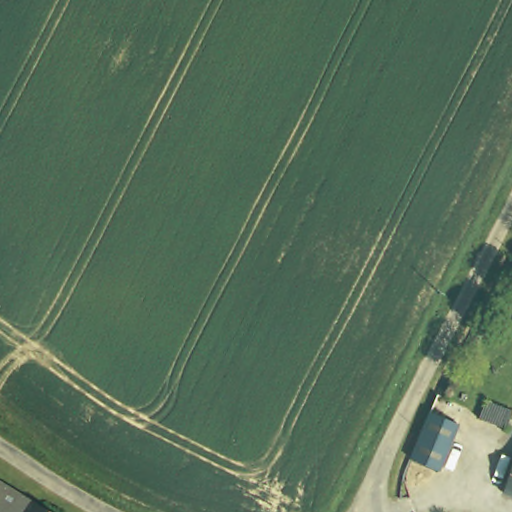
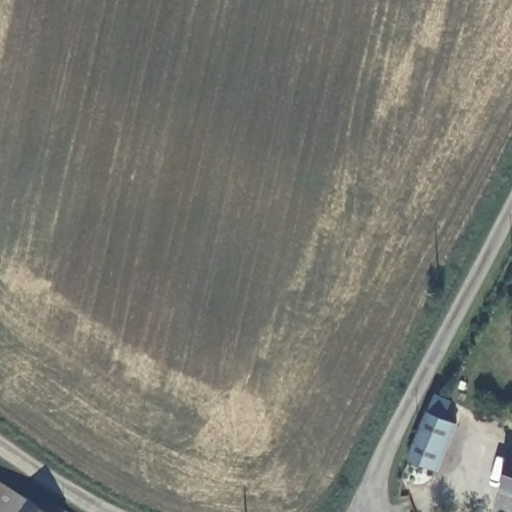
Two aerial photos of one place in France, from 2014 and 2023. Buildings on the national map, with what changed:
unchanged [(434,408),(462,420),(442,466),(414,454),(434,408)]
unchanged [(507,489),(512,473),(512,491),(507,489)]
unchanged [(0,512),(0,485),(45,512),(0,512)]

